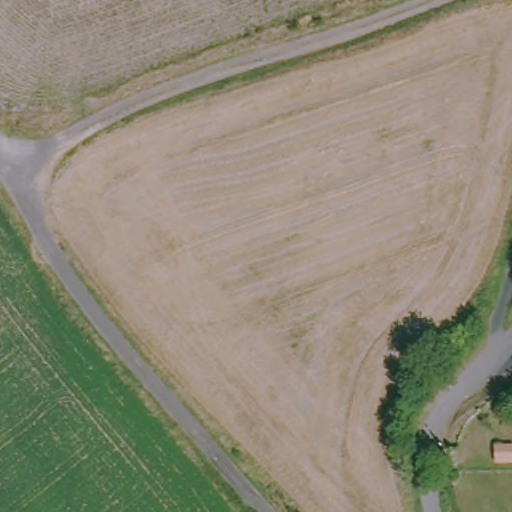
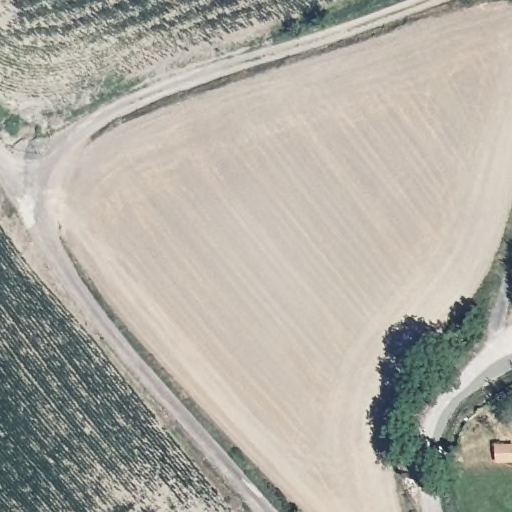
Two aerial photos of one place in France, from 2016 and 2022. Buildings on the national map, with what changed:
unchanged [(512,460),(497,460),(496,446),(512,446),(512,460)]

